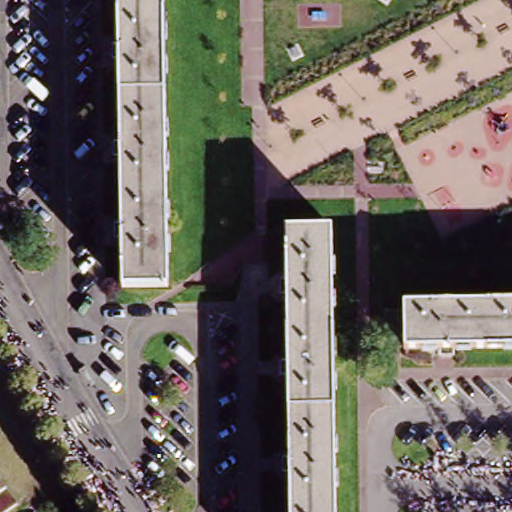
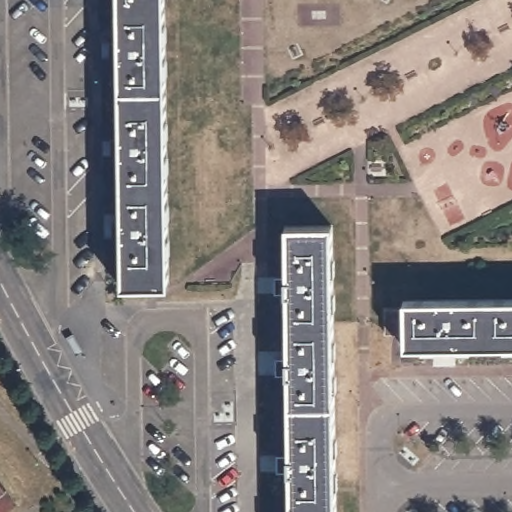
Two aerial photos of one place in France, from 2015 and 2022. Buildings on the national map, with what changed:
unchanged [(165,283),(140,283),(139,283),(119,284),(118,241),(118,234),(112,234),(111,219),(117,219),(117,152),(110,152),(110,137),(116,137),(116,130),(115,62),(115,55),(108,55),(108,40),(115,40),(115,33),(115,28),(114,0),(160,0),(165,283)]
unchanged [(332,408),(333,512),(287,512),(287,493),(286,480),(286,473),(280,473),(280,457),(286,457),(286,450),(285,427),(285,419),(285,375),(278,375),(278,360),(285,360),(283,294),(277,294),(277,279),(283,279),(283,272),(282,229),(328,228),(332,408)]
unchanged [(401,336),(402,335),(402,312),(400,312),(400,303),(512,301),(512,348),(480,348),(475,348),(451,349),(451,355),(437,356),(436,349),(404,350),(401,350),(401,336)]
unchanged [(0,512),(0,486),(18,510),(15,512),(0,512)]

